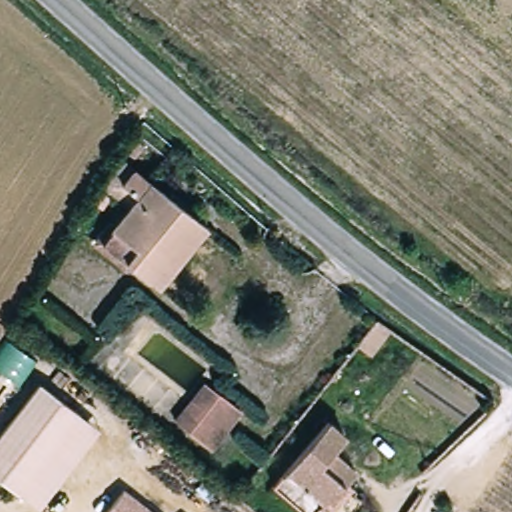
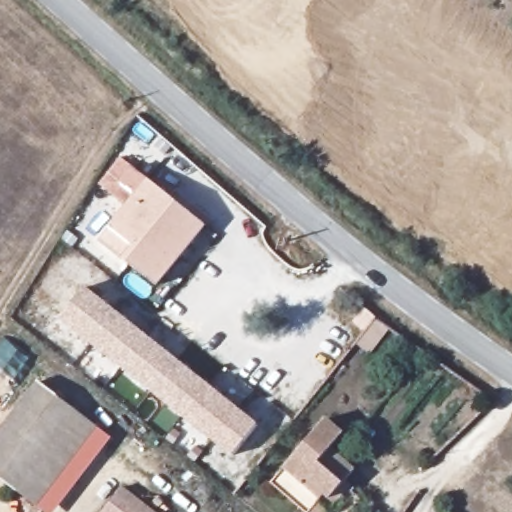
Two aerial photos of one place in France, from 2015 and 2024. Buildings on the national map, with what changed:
unchanged [(139,199),(123,187),(135,171),(204,224),(157,286),(103,245),(139,199)]
new [(232,457),(58,319),(85,286),(258,425),(232,457)]
unchanged [(0,486),(0,438),(38,388),(98,432),(41,511),(0,486)]
demolished [(185,431),(197,415),(185,406),(193,395),(206,404),(219,389),(244,408),(211,451),(185,431)]
unchanged [(309,510),(272,482),(302,446),(327,418),(344,433),(329,451),(325,448),(352,469),(333,493),(319,512),(311,512),(309,510)]
unchanged [(155,512),(107,512),(127,489),(155,512)]
unchanged [(473,500),(464,507),(457,498),(465,491),(473,500)]

